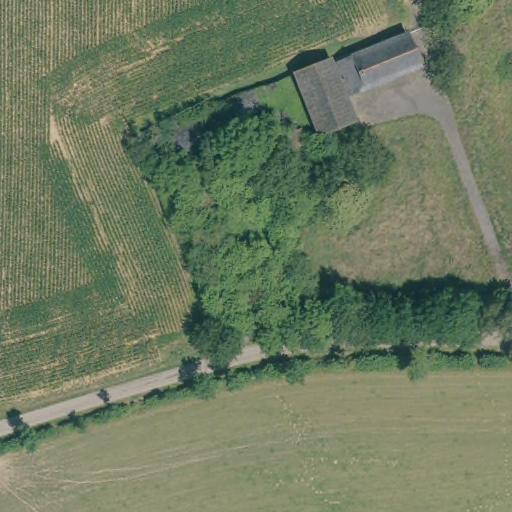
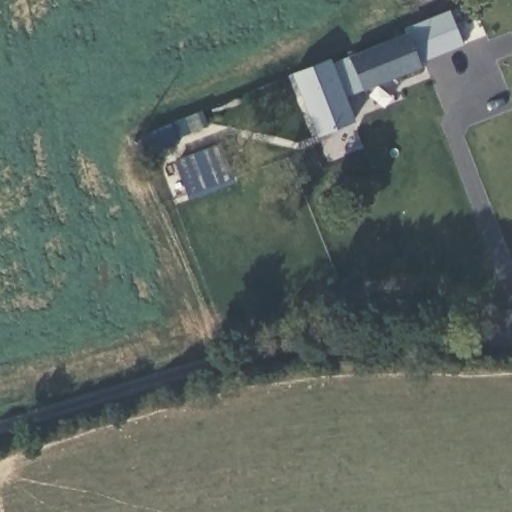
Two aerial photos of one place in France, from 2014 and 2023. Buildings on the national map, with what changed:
new [(418,62),(411,37),(407,27),(449,10),(464,44),(418,62)]
unchanged [(411,37),(421,71),(348,99),(343,101),(331,61),(411,37)]
unchanged [(352,118),(317,128),(298,74),(310,70),(331,61),(343,101),(348,99),(352,118)]
new [(177,138),(178,144),(151,152),(144,132),(191,115),(195,131),(177,138)]
new [(176,161),(220,144),(235,182),(191,200),(176,161)]

